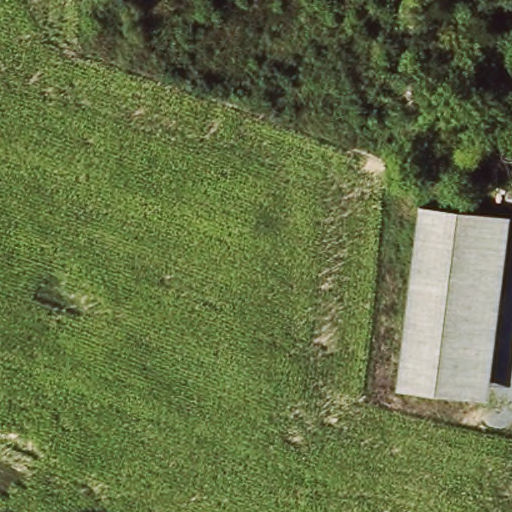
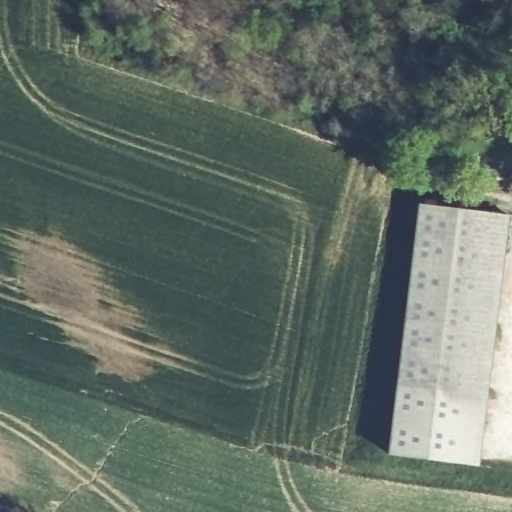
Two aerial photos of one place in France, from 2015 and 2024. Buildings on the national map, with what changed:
unchanged [(477,327),(469,392),(398,383),(406,320),(421,204),(491,213),(477,327)]
unchanged [(497,328),(488,395),(469,392),(477,327),(491,213),(511,216),(497,328)]
new [(478,466),(388,455),(398,383),(469,392),(488,395),(478,466)]

